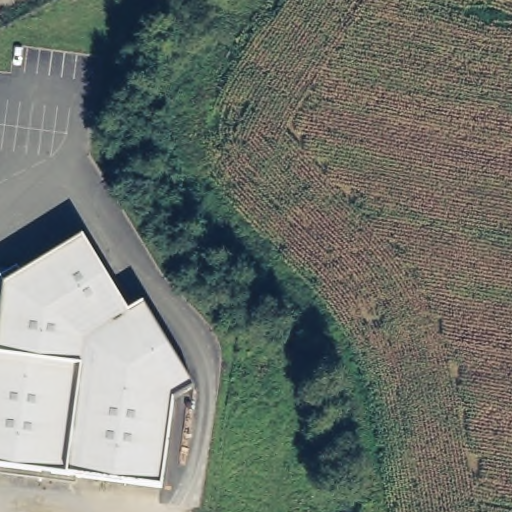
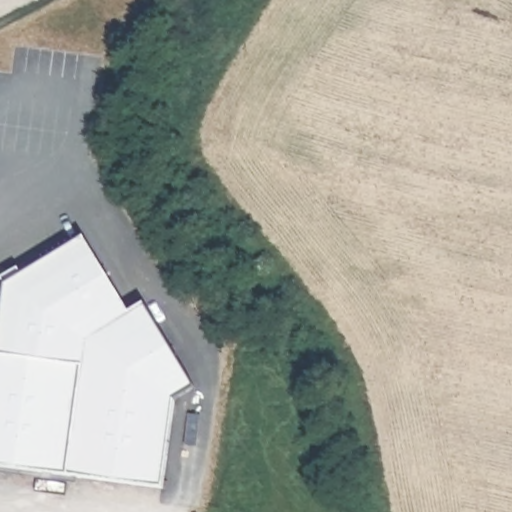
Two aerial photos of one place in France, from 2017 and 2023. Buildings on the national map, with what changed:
unchanged [(16,270),(21,277),(85,239),(129,312),(143,303),(193,389),(193,410),(186,413),(179,466),(166,465),(163,488),(0,467),(0,273),(9,275),(16,270)]

